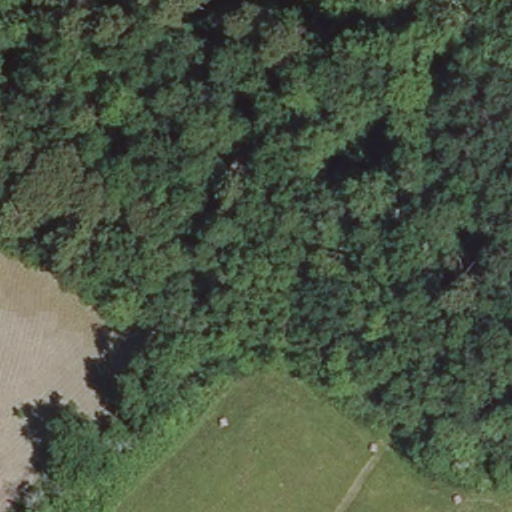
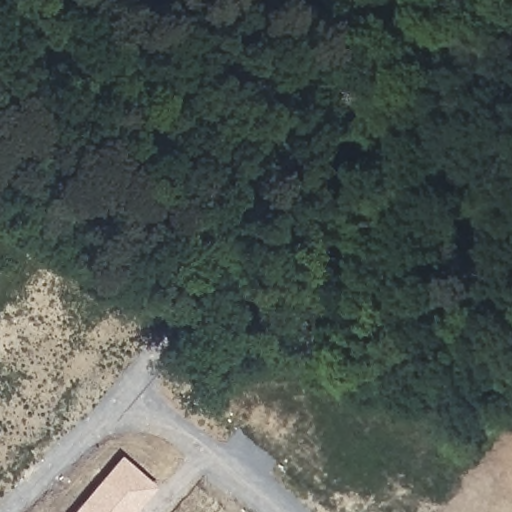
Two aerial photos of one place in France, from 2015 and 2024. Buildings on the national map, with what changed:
new [(120,454),(157,487),(135,512),(71,512),(120,454)]

